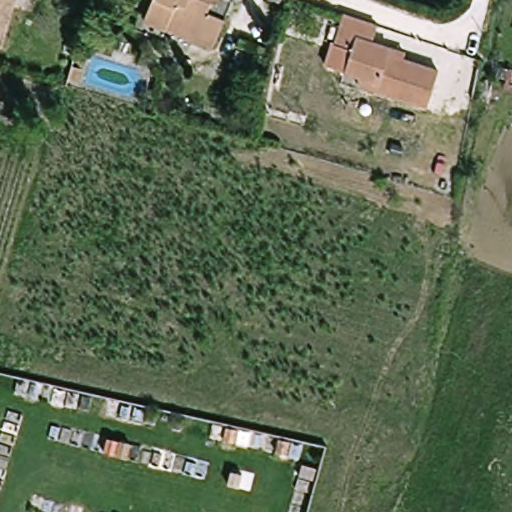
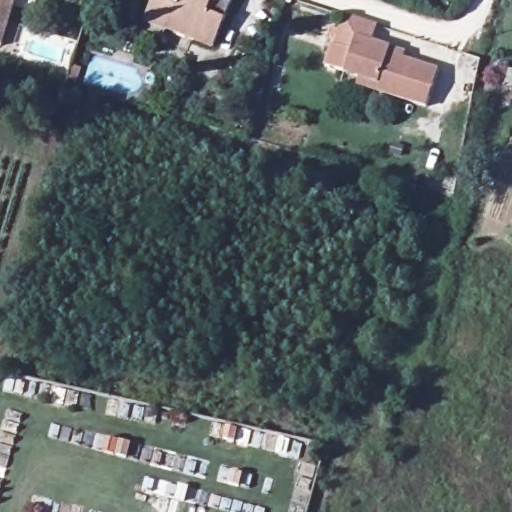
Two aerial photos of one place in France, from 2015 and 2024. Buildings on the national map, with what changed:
unchanged [(0,43),(0,0),(16,0),(3,44),(0,43)]
unchanged [(196,43),(198,39),(173,29),(171,33),(149,24),(159,0),(235,0),(238,1),(215,51),(196,43)]
unchanged [(368,79),(333,68),(340,46),(343,47),(352,16),(384,26),(380,44),(394,47),(411,53),(409,60),(446,71),(435,107),(384,91),(365,85),(368,79)]

